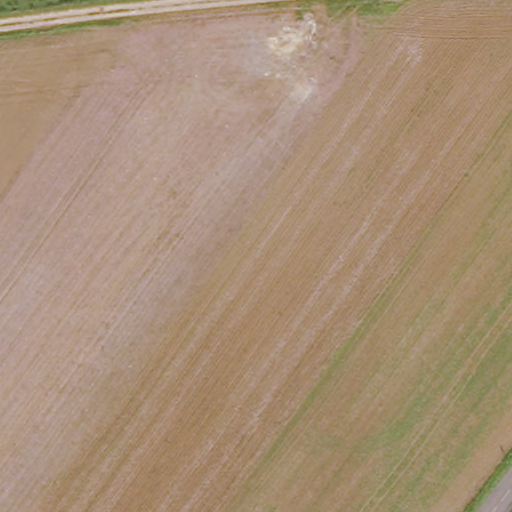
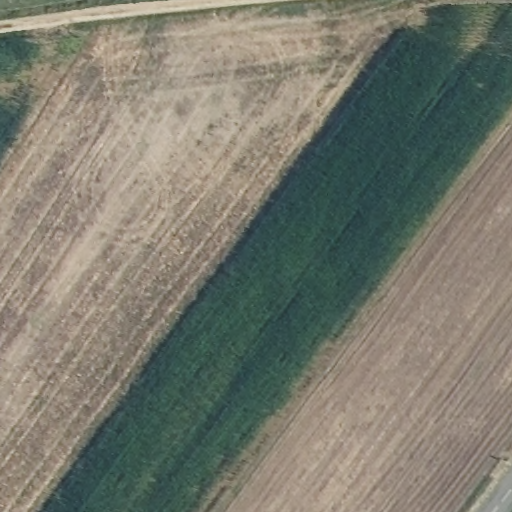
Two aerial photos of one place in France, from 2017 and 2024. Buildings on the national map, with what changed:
[]

